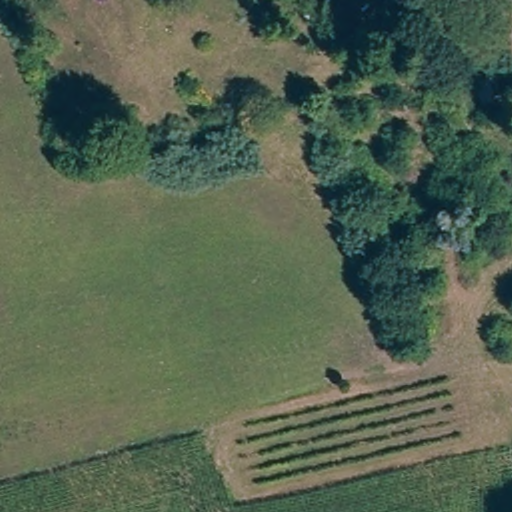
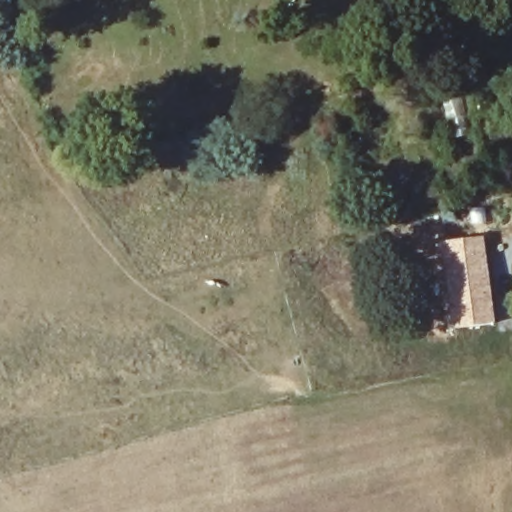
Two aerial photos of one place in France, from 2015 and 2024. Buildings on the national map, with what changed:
new [(482,235),(494,323),(449,332),(444,310),(437,242),(482,235)]

